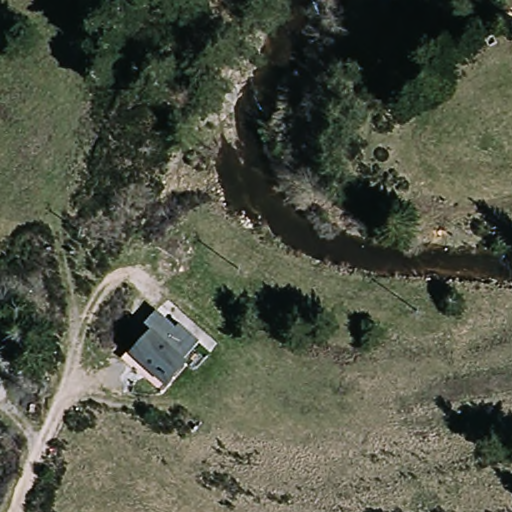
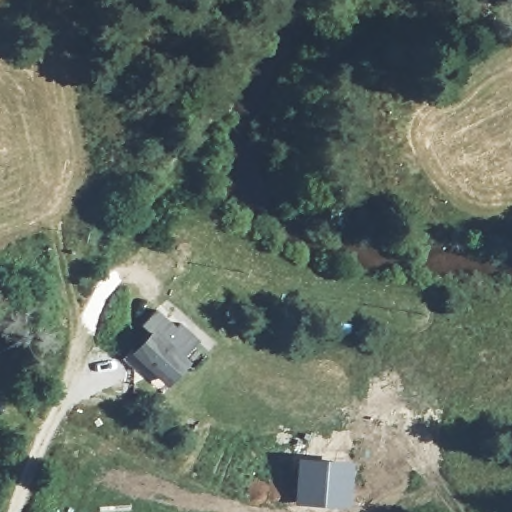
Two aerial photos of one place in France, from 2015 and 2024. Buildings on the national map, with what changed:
unchanged [(145,321),(158,306),(175,324),(180,320),(198,338),(192,362),(155,330),(145,321)]
unchanged [(171,387),(135,353),(155,330),(192,362),(171,387)]
new [(348,509),(293,504),(297,457),(352,462),(348,509)]

